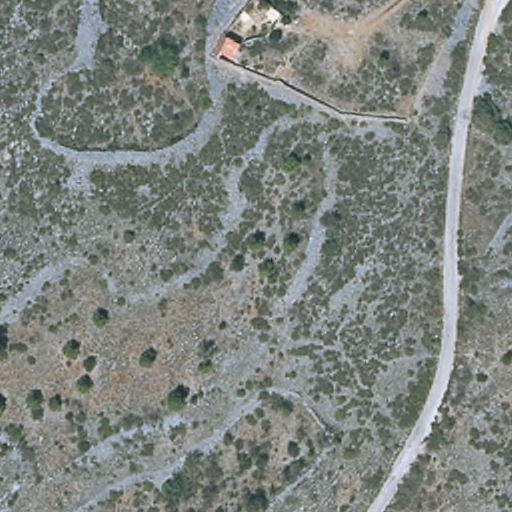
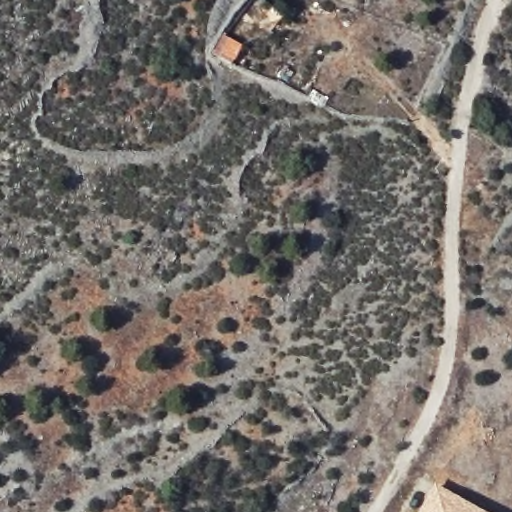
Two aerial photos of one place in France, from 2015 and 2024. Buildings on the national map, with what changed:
unchanged [(210,46),(220,30),(242,44),(232,60),(210,46)]
new [(489,512),(419,512),(433,484),(489,512)]

